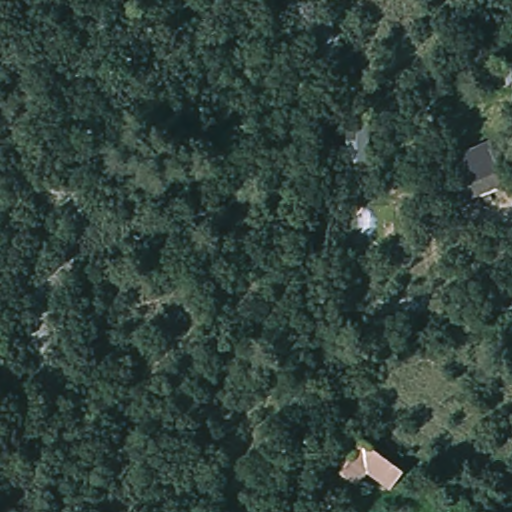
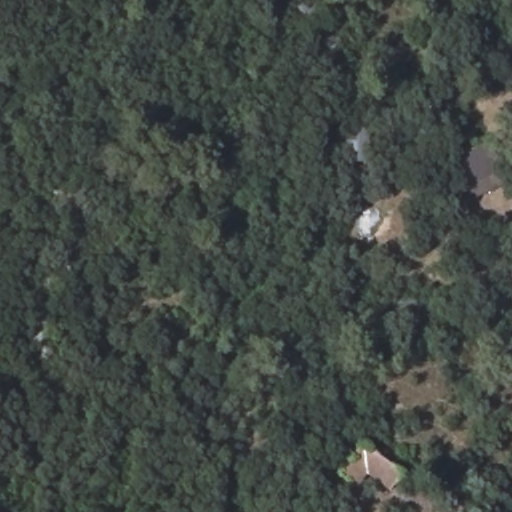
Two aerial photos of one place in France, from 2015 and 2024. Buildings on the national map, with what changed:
unchanged [(433,152),(415,160),(408,145),(427,138),(433,152)]
unchanged [(502,171),(464,189),(450,161),(487,144),(502,171)]
unchanged [(390,487),(367,472),(357,485),(340,470),(363,437),(405,468),(390,487)]

